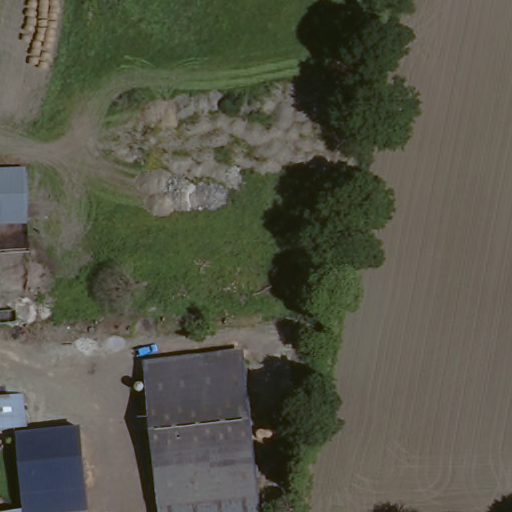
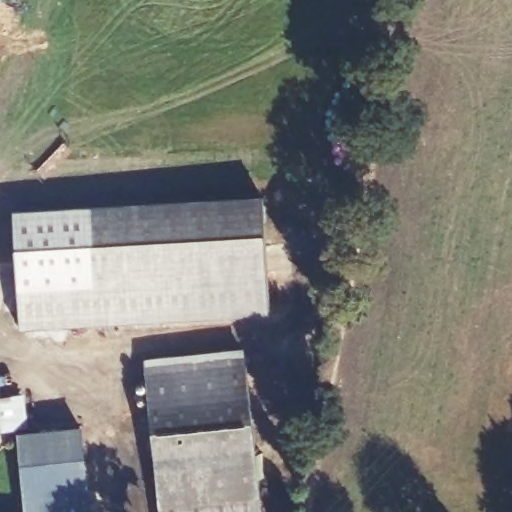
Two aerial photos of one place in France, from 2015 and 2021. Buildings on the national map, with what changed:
demolished [(0,226),(0,170),(31,169),(29,226),(0,226)]
new [(14,214),(262,195),(269,312),(21,329),(14,214)]
unchanged [(242,357),(260,512),(158,512),(143,368),(242,357)]
unchanged [(21,388),(25,421),(0,425),(0,390),(21,388)]
unchanged [(22,505),(16,428),(77,424),(87,512),(0,512),(0,509),(22,505)]

